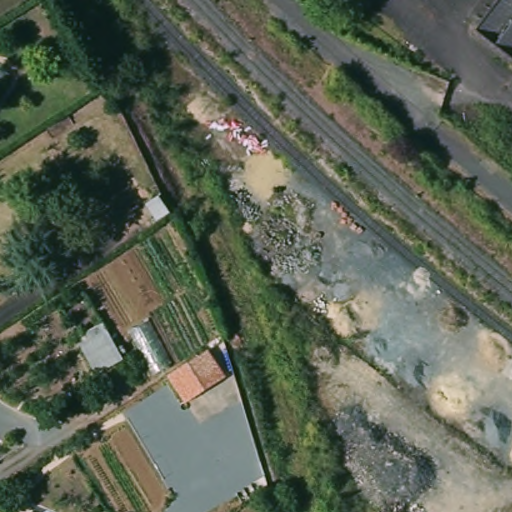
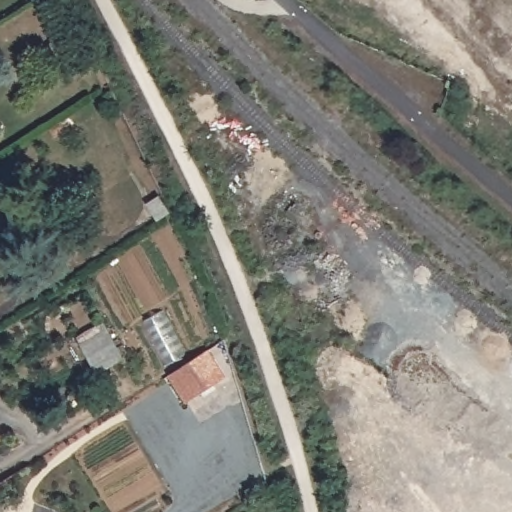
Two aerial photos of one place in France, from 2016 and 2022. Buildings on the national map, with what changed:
demolished [(475,27),(496,0),(512,0),(512,56),(475,27)]
unchanged [(104,326),(125,359),(100,375),(78,342),(104,326)]
unchanged [(208,347),(225,376),(185,401),(169,375),(208,347)]

